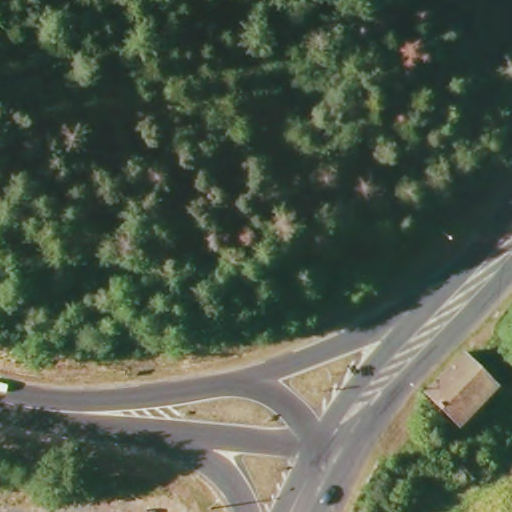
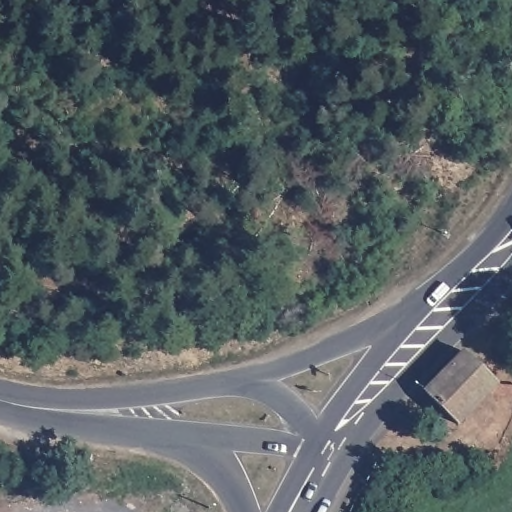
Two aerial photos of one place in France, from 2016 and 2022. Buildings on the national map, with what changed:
unchanged [(490,392),(460,425),(425,392),(465,353),(473,360),(496,382),(512,386),(512,396),(490,392)]

